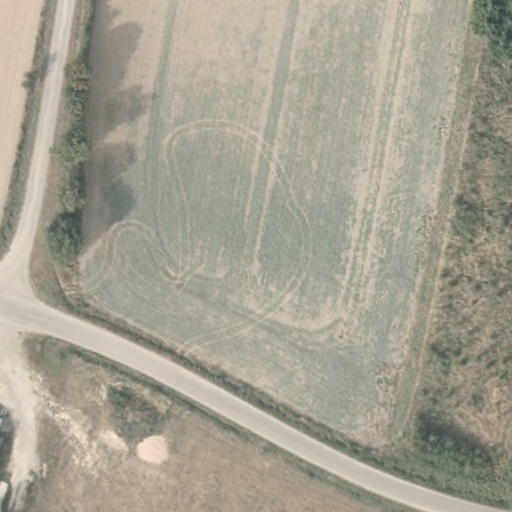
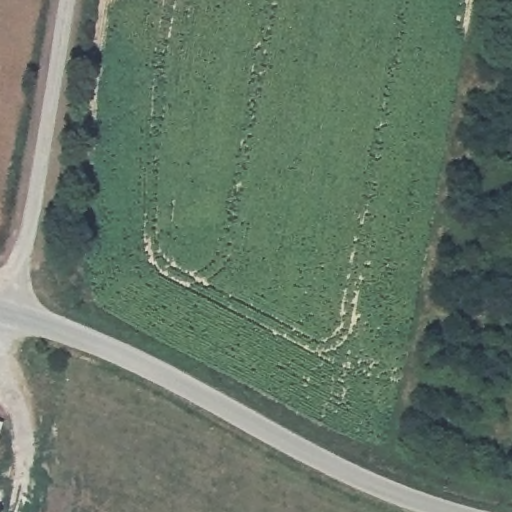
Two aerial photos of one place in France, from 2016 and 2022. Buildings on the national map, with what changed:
[]

